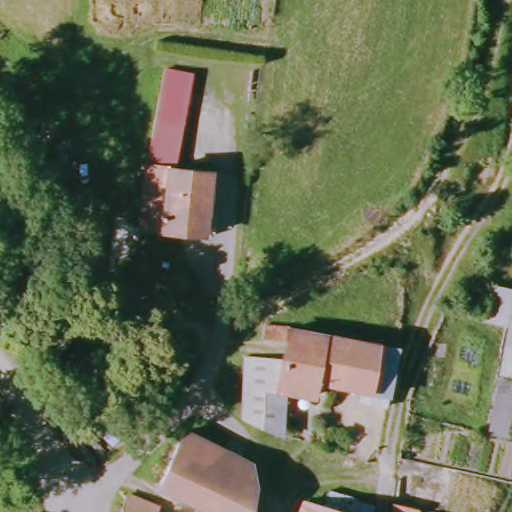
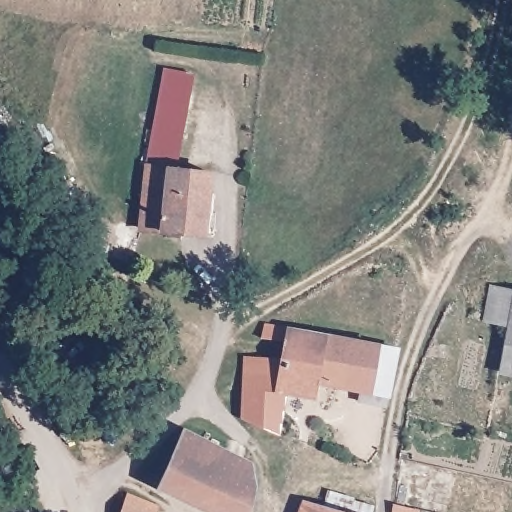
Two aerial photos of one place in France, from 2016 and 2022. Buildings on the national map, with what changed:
unchanged [(145,163),(164,67),(193,73),(175,165),(145,163)]
unchanged [(207,231),(137,227),(140,163),(211,166),(207,231)]
unchanged [(512,293),(512,374),(504,373),(510,316),(485,313),(488,290),(512,293)]
unchanged [(388,415),(374,412),(361,411),(363,391),(305,382),(304,391),(276,386),(269,421),(240,411),(240,360),(283,367),(286,342),(262,337),(265,320),(387,340),(397,341),(388,415)]
unchanged [(504,382),(512,382),(512,437),(497,433),(504,382)]
unchanged [(246,472),(262,494),(256,512),(210,512),(161,488),(177,437),(246,472)]
unchanged [(128,492),(161,507),(159,512),(122,512),(128,492)]
unchanged [(304,496),(362,512),(297,512),(304,496)]
unchanged [(422,512),(397,512),(398,506),(422,512)]

